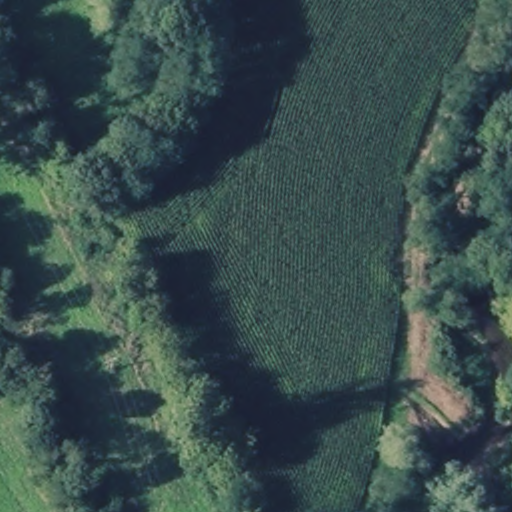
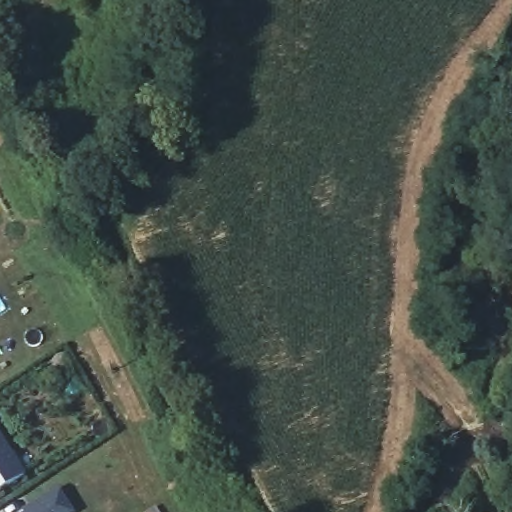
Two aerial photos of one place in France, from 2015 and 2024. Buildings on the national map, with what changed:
new [(25,473),(0,489),(0,434),(25,473)]
new [(33,509),(31,505),(58,488),(72,510),(69,512),(28,512),(33,509)]

